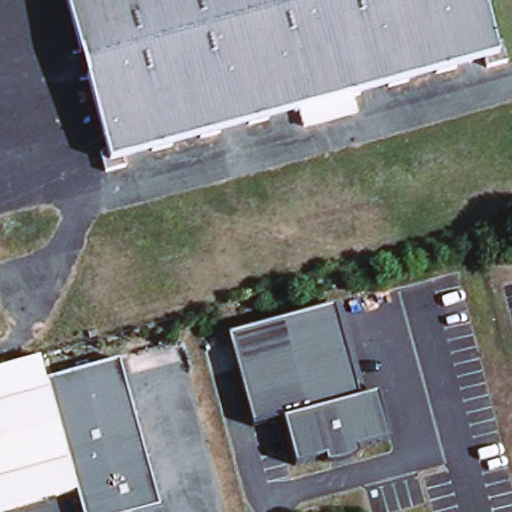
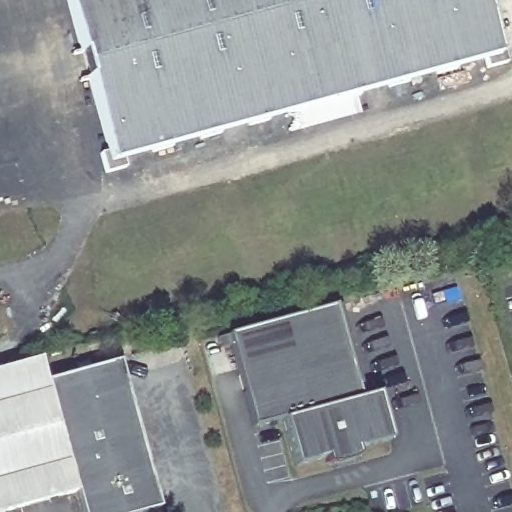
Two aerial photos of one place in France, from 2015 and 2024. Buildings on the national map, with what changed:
unchanged [(512,40),(512,63),(498,67),(493,59),(132,159),(135,169),(114,175),(108,154),(117,151),(74,0),(494,0),(505,41),(512,40)]
unchanged [(377,393),(390,439),(294,467),(281,419),(251,429),(228,347),(218,349),(215,339),(225,337),(224,337),(332,305),(358,398),(377,393)]
unchanged [(81,486),(0,508),(0,366),(43,354),(44,356),(44,357),(45,357),(46,357),(71,447),(81,486)]
unchanged [(169,504),(142,512),(93,512),(54,379),(126,358),(169,504)]

